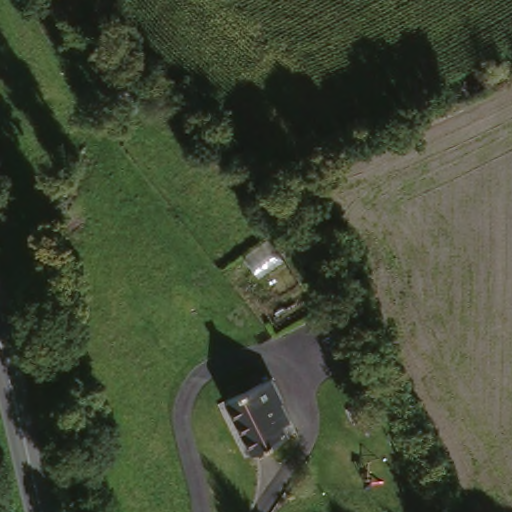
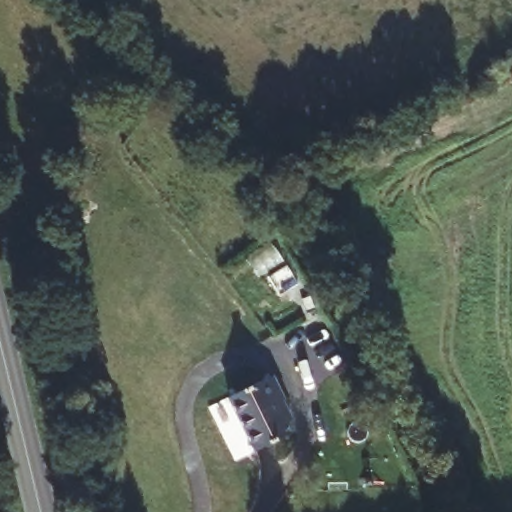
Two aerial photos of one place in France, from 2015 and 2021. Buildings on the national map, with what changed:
unchanged [(152,66),(134,75),(123,57),(139,50),(152,66)]
unchanged [(286,432),(252,448),(224,395),(260,378),(286,432)]

